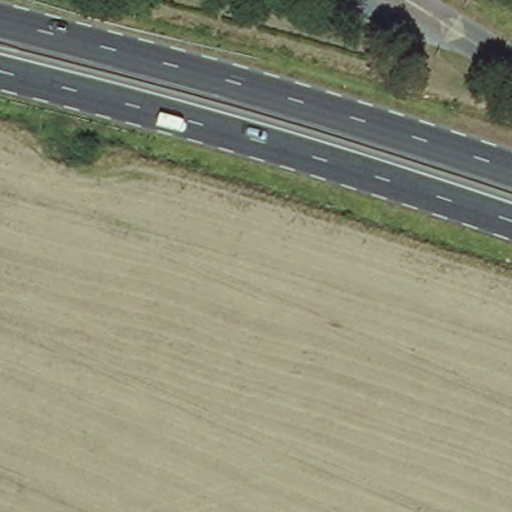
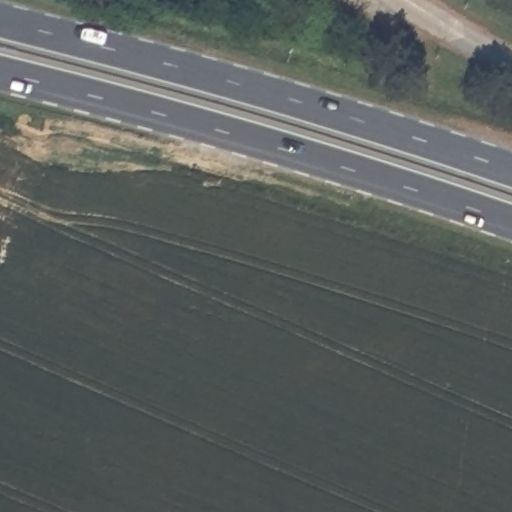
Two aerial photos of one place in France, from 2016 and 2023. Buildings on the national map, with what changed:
[]

